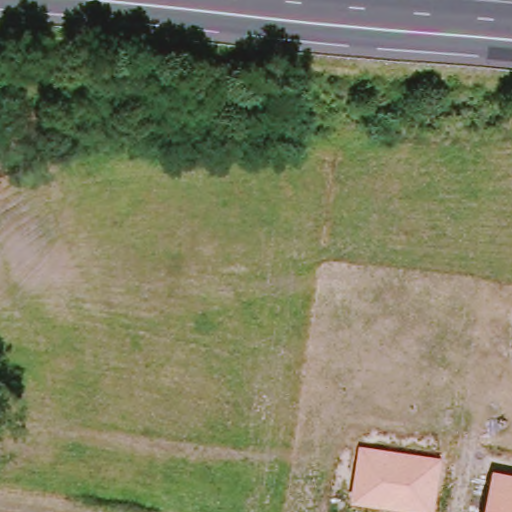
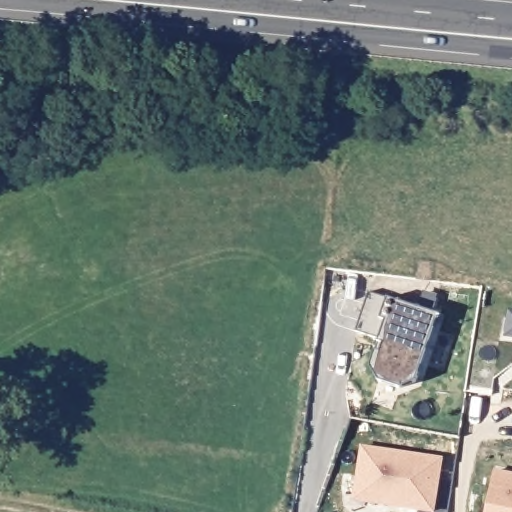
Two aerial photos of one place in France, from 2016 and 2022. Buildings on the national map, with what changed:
new [(380,383),(371,368),(376,353),(381,354),(384,344),(379,343),(355,332),(369,293),(388,298),(436,315),(446,317),(426,380),(418,376),(416,381),(400,389),(380,383)]
new [(509,311),(512,311),(512,339),(505,338),(509,311)]
unchanged [(442,458),(435,512),(418,512),(351,502),(360,445),(442,458)]
unchanged [(512,474),(512,512),(485,512),(493,470),(512,474)]

